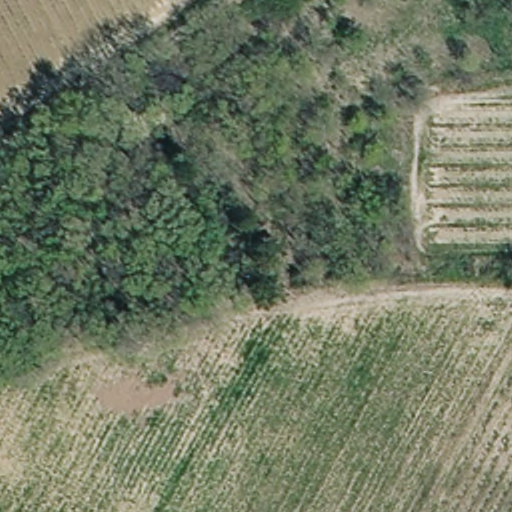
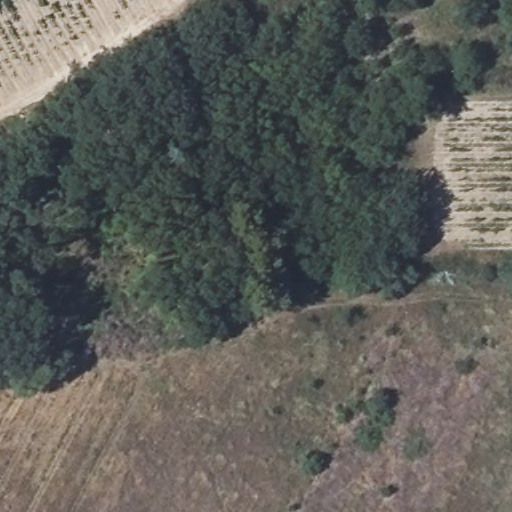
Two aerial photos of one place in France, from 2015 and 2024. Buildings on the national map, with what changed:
unchanged [(165,111),(143,124),(135,111),(156,98),(165,111)]

